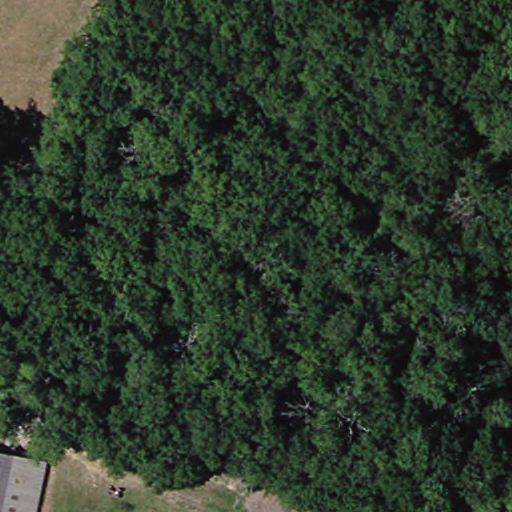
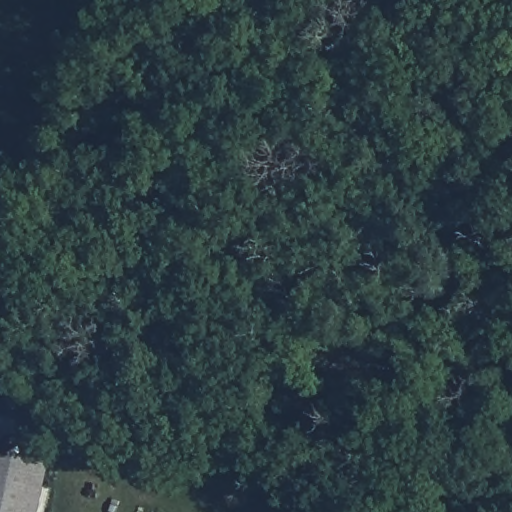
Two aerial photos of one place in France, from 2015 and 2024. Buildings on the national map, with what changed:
unchanged [(33,470),(19,512),(0,512),(0,459),(33,470)]

